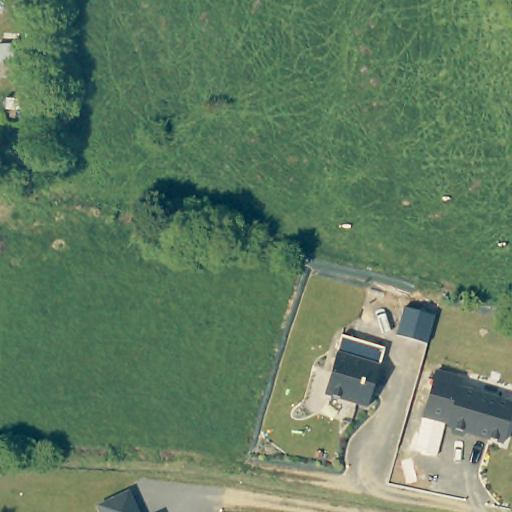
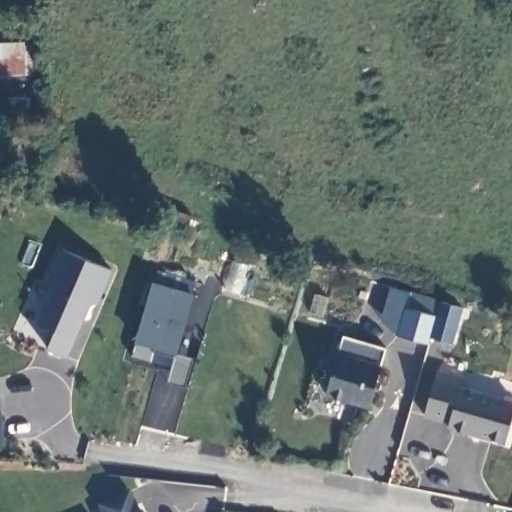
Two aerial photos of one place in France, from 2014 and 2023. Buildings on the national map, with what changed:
unchanged [(33,75),(6,78),(4,40),(31,38),(33,75)]
new [(113,268),(97,306),(90,303),(68,357),(49,349),(56,328),(37,322),(52,285),(45,281),(60,246),(113,268)]
new [(195,294),(179,353),(135,340),(151,282),(195,294)]
unchanged [(463,306),(453,342),(431,336),(430,344),(397,335),(411,291),(463,306)]
unchanged [(325,395),(342,336),(385,349),(368,407),(325,395)]
unchanged [(471,434),(466,437),(453,433),(451,429),(447,428),(448,424),(423,417),(436,373),(462,380),(460,390),(512,405),(512,418),(505,444),(471,434)]
new [(0,441),(0,406),(2,440),(0,441)]
unchanged [(130,493),(138,512),(99,512),(97,508),(130,493)]

